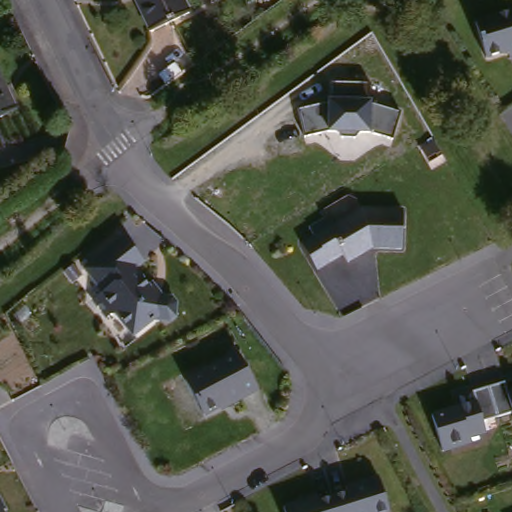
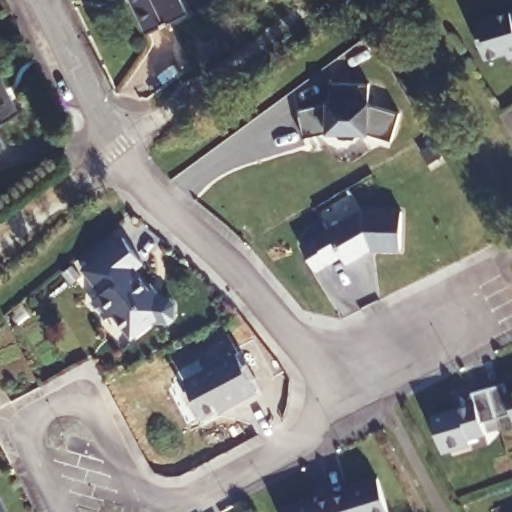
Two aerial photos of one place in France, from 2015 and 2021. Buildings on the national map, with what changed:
unchanged [(191,16),(150,33),(136,0),(184,0),(191,16)]
unchanged [(489,63),(478,27),(512,17),(512,60),(511,56),(489,63)]
unchanged [(1,72),(20,114),(0,124),(0,71),(1,72)]
unchanged [(375,134),(347,134),(304,142),(298,111),(328,103),(328,82),(368,84),(368,108),(389,107),(401,117),(391,142),(375,134)]
unchanged [(305,246),(318,239),(313,230),(328,222),(333,230),(365,211),(405,212),(404,251),(374,250),(372,250),(367,252),(368,255),(351,265),(347,257),(333,265),(320,272),(305,246)]
unchanged [(159,298),(162,301),(171,302),(176,308),(174,321),(170,327),(153,325),(133,340),(117,321),(110,320),(107,323),(93,306),(103,298),(83,275),(123,242),(143,267),(134,275),(148,292),(152,290),(159,298)]
unchanged [(227,407),(203,420),(184,385),(236,357),(256,395),(227,410),(227,407)]
unchanged [(475,408),(471,397),(504,387),(507,398),(512,397),(512,418),(482,427),(485,438),(468,443),(470,448),(442,457),(431,421),(475,408)]
unchanged [(316,506),(346,497),(345,493),(378,482),(387,512),(282,512),(315,502),(316,506)]

